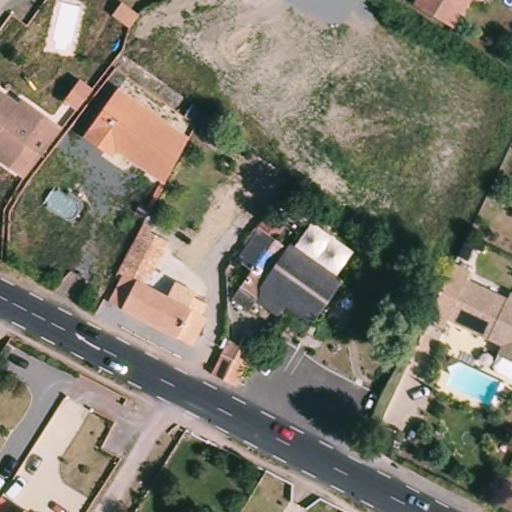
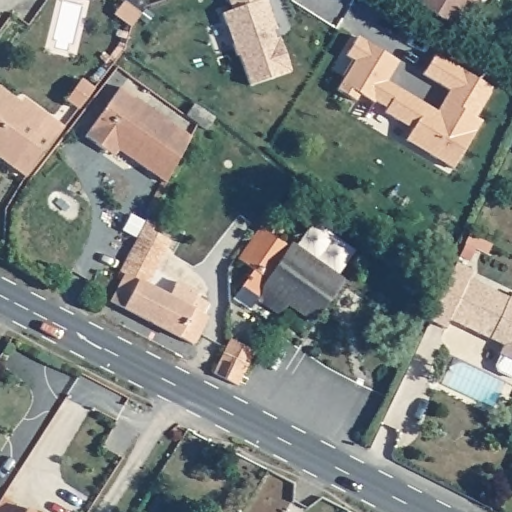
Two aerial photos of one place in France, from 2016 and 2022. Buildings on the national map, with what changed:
new [(288,73),(247,86),(237,56),(234,56),(220,14),(229,11),(225,0),(260,0),(262,0),(273,30),(276,39),(288,73)]
unchanged [(421,8),(425,0),(477,0),(459,30),(421,8)]
unchanged [(139,15),(130,28),(114,16),(122,4),(139,15)]
new [(410,128),(382,111),(384,107),(372,99),(371,101),(357,93),(352,99),(335,89),(352,59),(343,54),(355,36),(396,60),(383,80),(435,111),(436,109),(442,99),(447,89),(421,73),(432,53),(490,88),(472,116),(478,120),(451,167),(427,153),(403,139),(406,134),(410,128)]
new [(79,71),(96,84),(81,104),(64,91),(79,71)]
unchanged [(217,112),(211,121),(204,130),(166,104),(174,93),(179,85),(217,112)]
unchanged [(191,136),(170,186),(121,153),(115,159),(87,136),(121,89),(191,136)]
unchanged [(27,108),(44,119),(7,167),(0,162),(0,95),(24,113),(27,108)]
unchanged [(290,225),(280,239),(342,283),(317,318),(292,299),(282,313),(262,298),(254,310),(236,298),(256,270),(241,259),(273,214),(290,225)]
unchanged [(156,228),(154,232),(176,244),(152,287),(194,308),(199,298),(216,306),(196,345),(113,303),(128,274),(125,272),(149,224),(156,228)]
unchanged [(452,324),(448,332),(432,324),(453,273),(470,280),(469,282),(512,301),(512,361),(502,357),(507,348),(493,342),(483,337),(452,324)]
unchanged [(232,339),(257,352),(241,386),(216,373),(232,339)]
unchanged [(17,501),(27,507),(27,506),(38,512),(10,512),(17,501)]

